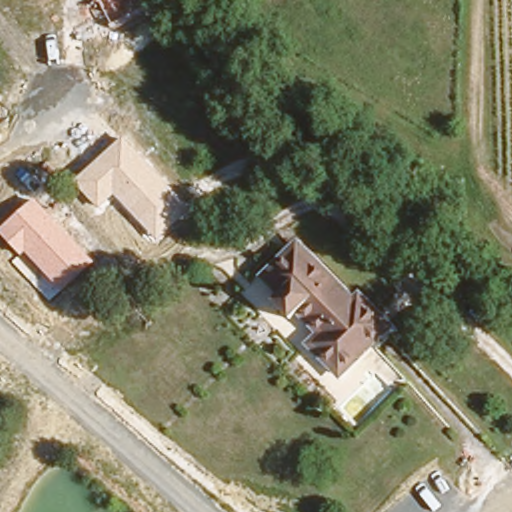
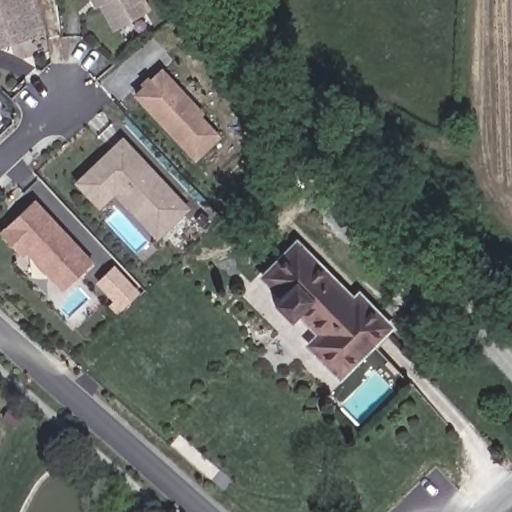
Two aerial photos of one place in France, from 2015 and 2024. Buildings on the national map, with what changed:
new [(35,0),(46,33),(0,47),(0,0),(35,0)]
unchanged [(91,0),(94,0),(92,1),(91,0)]
unchanged [(114,29),(98,0),(145,0),(150,8),(114,29)]
new [(132,94),(162,67),(224,135),(195,161),(132,94)]
unchanged [(156,239),(115,194),(98,209),(74,180),(125,137),(191,210),(156,239)]
unchanged [(63,290),(27,253),(21,259),(0,236),(0,231),(34,197),(95,261),(63,290)]
unchanged [(312,226),(359,295),(369,288),(395,329),(313,382),(287,343),(302,333),(285,309),(273,317),(259,295),(271,288),(253,265),(312,226)]

